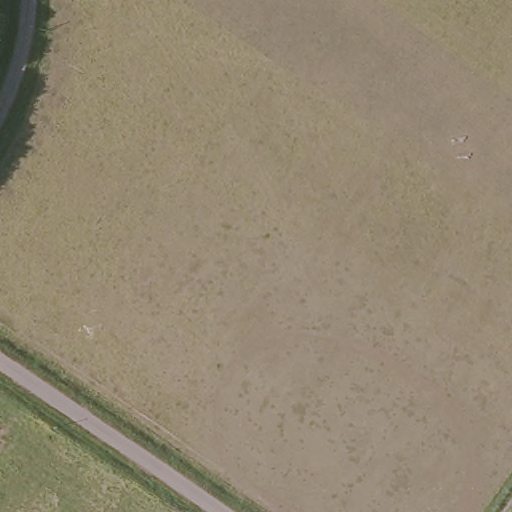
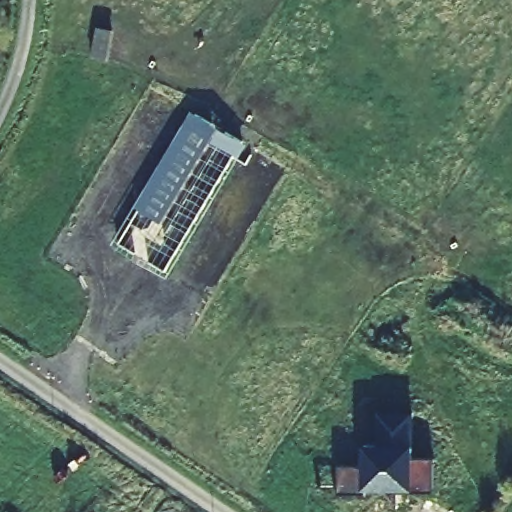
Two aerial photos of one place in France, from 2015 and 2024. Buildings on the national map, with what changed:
new [(246,145),(167,279),(111,245),(190,111),(246,145)]
new [(406,458),(405,444),(375,446),(376,411),(412,412),(412,458),(406,458)]
new [(338,467),(365,465),(364,456),(371,455),(371,446),(405,444),(406,458),(433,457),(435,492),(395,494),(395,487),(366,489),(366,494),(340,495),(338,467)]

